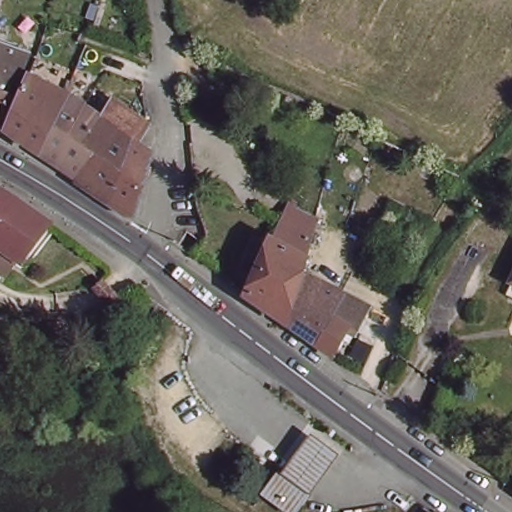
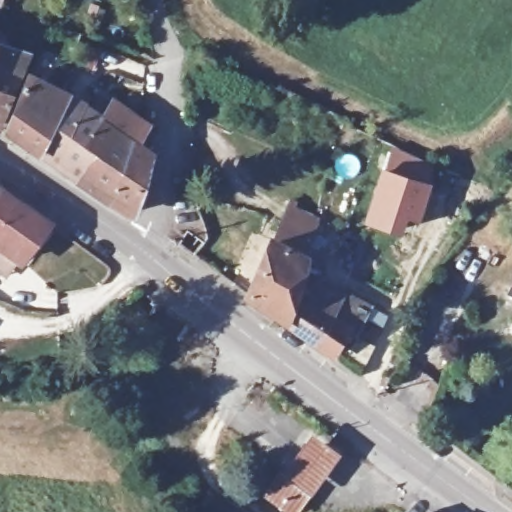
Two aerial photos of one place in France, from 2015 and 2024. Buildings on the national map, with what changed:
demolished [(180,67),(188,46),(209,56),(210,56),(202,76),(180,67)]
unchanged [(15,101),(4,135),(0,132),(0,47),(30,58),(15,101)]
unchanged [(43,161),(13,140),(12,140),(36,80),(71,100),(86,109),(90,96),(93,89),(116,105),(154,131),(144,146),(142,148),(156,156),(145,199),(138,225),(120,213),(111,207),(82,187),(61,174),(43,161)]
new [(392,145),(435,161),(431,180),(382,166),(392,145)]
new [(382,166),(431,180),(419,221),(407,218),(402,233),(363,221),(382,166)]
unchanged [(44,218),(17,256),(0,244),(0,187),(13,196),(44,218)]
unchanged [(341,326),(343,327),(326,357),(306,342),(277,319),(243,292),(276,220),(283,205),(289,208),(311,219),(308,230),(306,235),(292,276),(338,292),(336,298),(351,306),(341,326)]
unchanged [(281,512),(258,495),(276,470),(281,475),(309,435),(340,457),(297,512),(281,512)]

